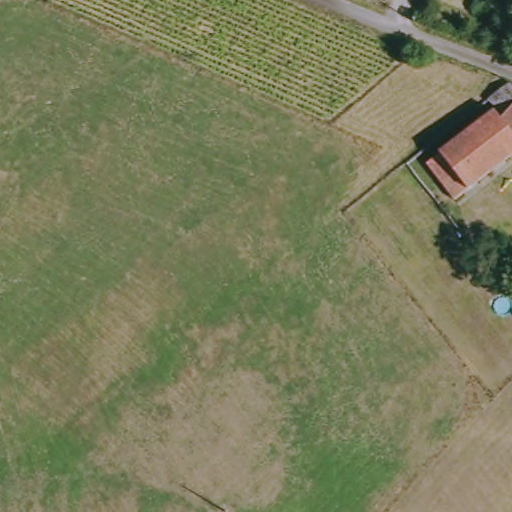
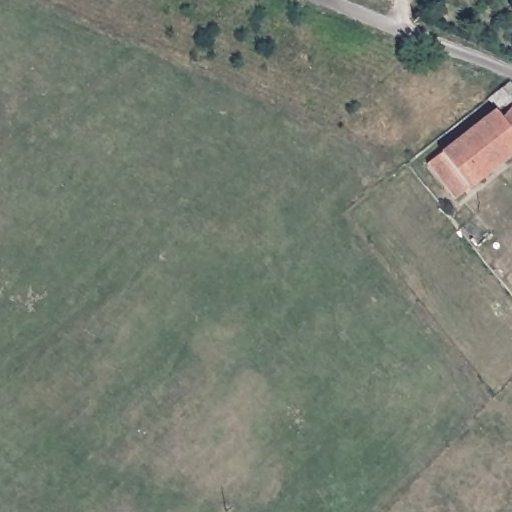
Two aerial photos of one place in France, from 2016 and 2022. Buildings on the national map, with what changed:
unchanged [(512,83),(512,157),(458,201),(429,164),(499,110),(505,120),(511,115),(495,95),(510,81),(512,83)]

